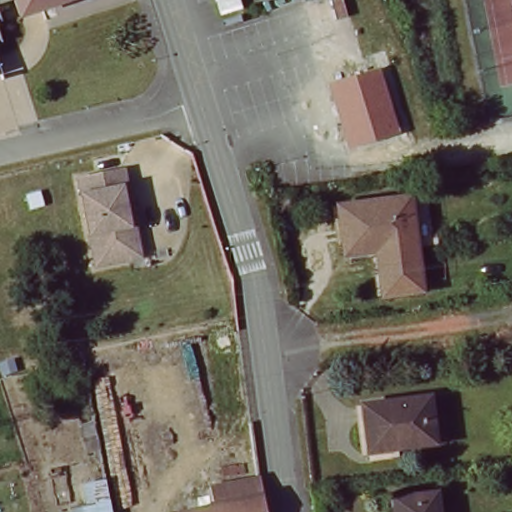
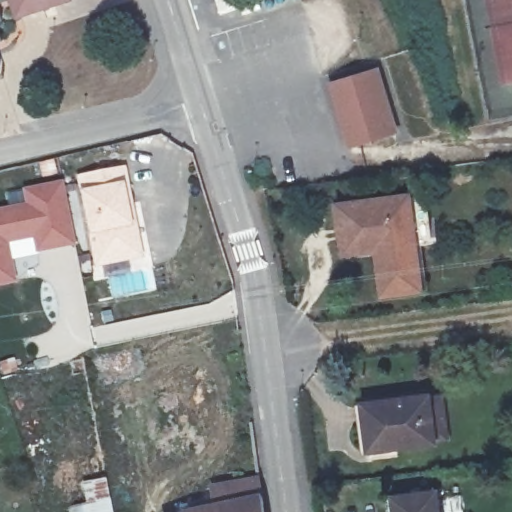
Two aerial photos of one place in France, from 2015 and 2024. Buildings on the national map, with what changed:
unchanged [(15,0),(19,11),(1,17),(6,33),(0,35),(0,0),(15,0)]
unchanged [(19,11),(15,0),(75,0),(78,9),(24,27),(20,14),(19,11)]
unchanged [(221,6),(220,0),(241,0),(241,1),(221,6)]
unchanged [(225,20),(223,13),(242,8),(243,14),(225,20)]
unchanged [(5,52),(0,54),(0,36),(5,52)]
unchanged [(374,61),(386,100),(393,123),(347,137),(328,75),(364,64),(374,61)]
unchanged [(3,82),(0,83),(0,73),(3,82)]
new [(26,203),(22,187),(63,180),(77,246),(36,253),(33,239),(10,244),(18,284),(0,288),(0,209),(26,203)]
unchanged [(140,269),(105,276),(89,190),(133,182),(139,218),(143,237),(138,239),(134,239),(140,269)]
unchanged [(422,289),(384,295),(375,247),(344,252),(337,205),(408,194),(422,289)]
unchanged [(391,443),(362,447),(358,406),(424,398),(438,397),(443,442),(429,443),(391,448),(391,443)]
unchanged [(192,508),(220,502),(218,486),(265,480),(270,512),(184,512),(192,508)]
unchanged [(110,512),(89,512),(84,488),(105,484),(110,512)]
unchanged [(395,495),(403,494),(445,488),(448,512),(397,512),(395,495)]

